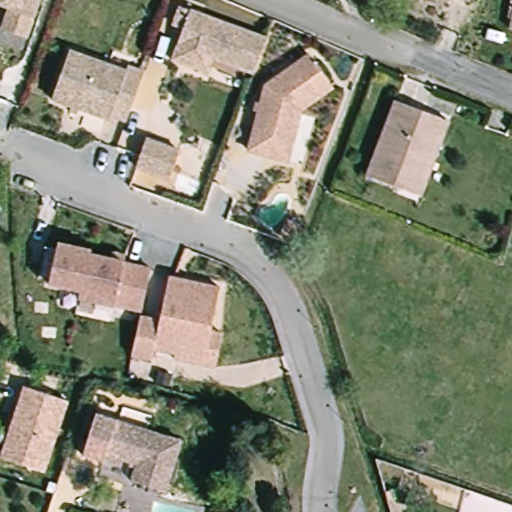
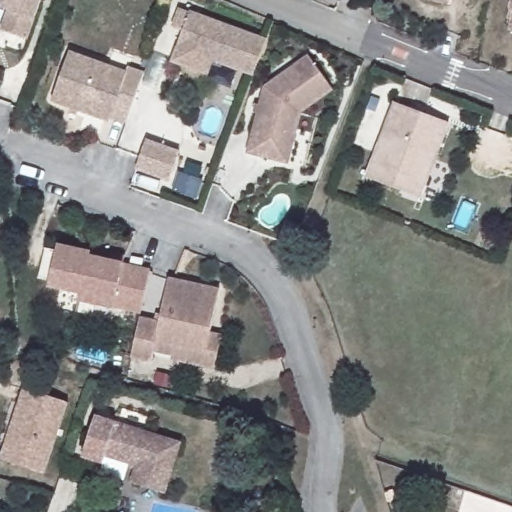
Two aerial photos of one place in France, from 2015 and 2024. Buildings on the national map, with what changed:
unchanged [(0,30),(0,27),(7,9),(0,7),(0,0),(39,0),(25,38),(0,30)]
unchanged [(459,0),(469,0),(468,2),(459,0)]
unchanged [(265,40),(262,47),(250,76),(175,47),(189,11),(265,40)]
unchanged [(109,117),(107,121),(49,100),(67,51),(124,72),(125,67),(142,73),(134,94),(124,122),(109,117)]
unchanged [(267,154),(247,148),(263,84),(307,52),(331,85),(298,108),(288,145),(285,159),(267,154)]
unchanged [(420,197),(365,177),(393,102),(448,122),(420,197)]
unchanged [(176,151),(165,180),(132,167),(143,139),(176,151)]
unchanged [(80,296),(82,289),(50,282),(52,277),(40,274),(47,244),(58,246),(60,241),(92,249),(92,252),(112,257),(113,249),(127,252),(125,260),(152,266),(142,310),(80,296)]
unchanged [(160,319),(169,275),(220,287),(210,331),(205,353),(157,343),(154,354),(152,360),(132,355),(137,332),(141,315),(160,319)]
unchanged [(223,333),(215,367),(154,354),(157,343),(205,353),(210,331),(223,333)]
unchanged [(0,459),(22,388),(67,402),(45,474),(0,459)]
unchanged [(166,491),(132,481),(137,464),(105,455),(107,446),(87,440),(95,415),(181,440),(166,491)]

